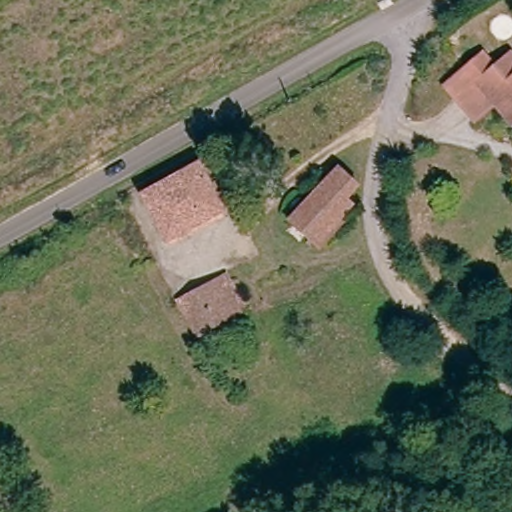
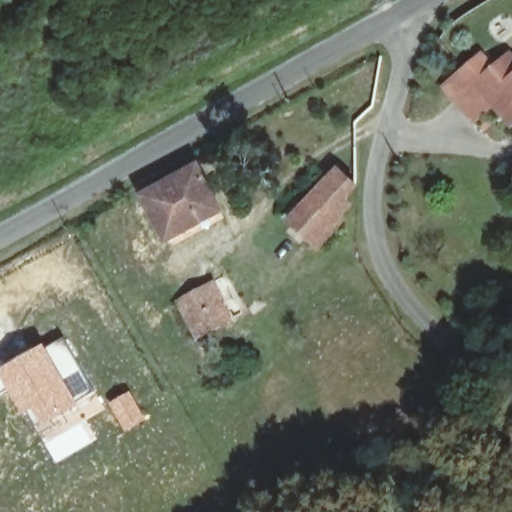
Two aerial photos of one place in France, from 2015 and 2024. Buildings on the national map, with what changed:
unchanged [(502,108),(482,126),(453,91),(481,68),(488,76),(512,55),(512,119),(502,108)]
unchanged [(221,207),(161,242),(137,200),(198,164),(221,207)]
unchanged [(359,189),(345,202),(350,209),(344,215),(309,241),(287,211),(342,166),(355,182),(359,189)]
unchanged [(215,278),(229,301),(224,306),(228,316),(217,322),(209,313),(207,317),(192,294),(199,288),(215,278)]
new [(46,348),(62,339),(93,392),(77,401),(79,404),(35,429),(26,415),(7,391),(0,377),(0,368),(44,344),(46,348)]
new [(0,395),(0,377),(7,391),(0,395)]
new [(129,392),(146,420),(125,432),(109,404),(129,392)]

